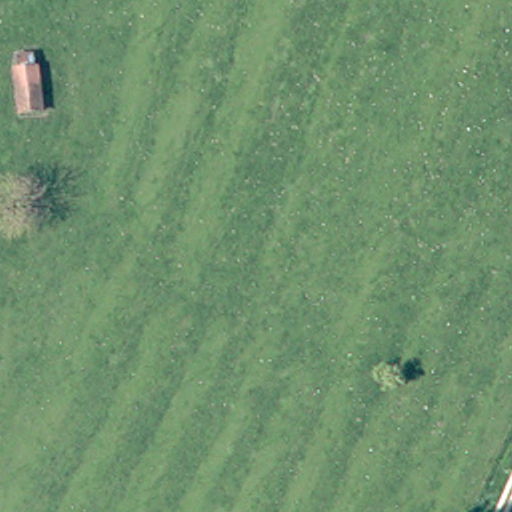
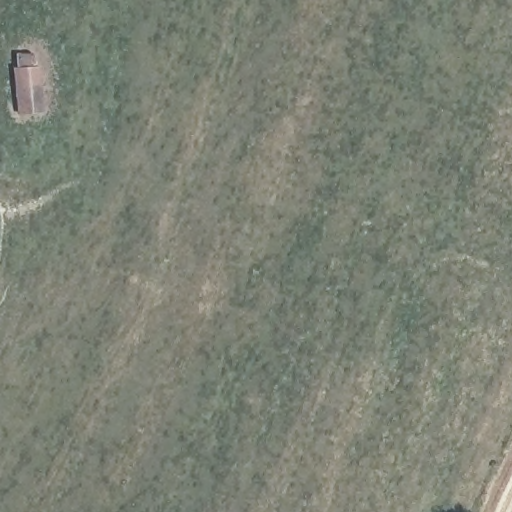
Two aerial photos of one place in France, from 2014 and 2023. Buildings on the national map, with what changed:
unchanged [(37,74),(41,74),(42,115),(22,116),(17,59),(35,59),(37,74)]

